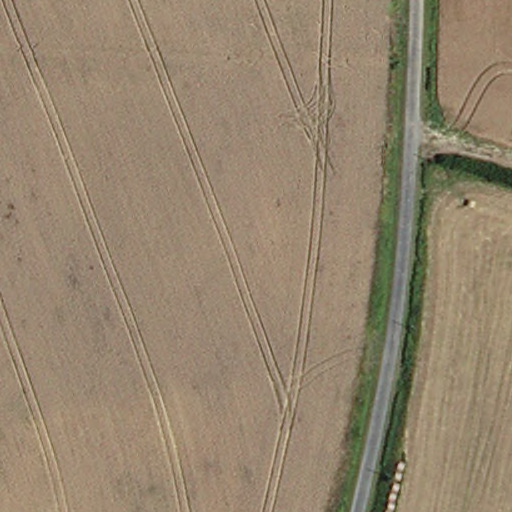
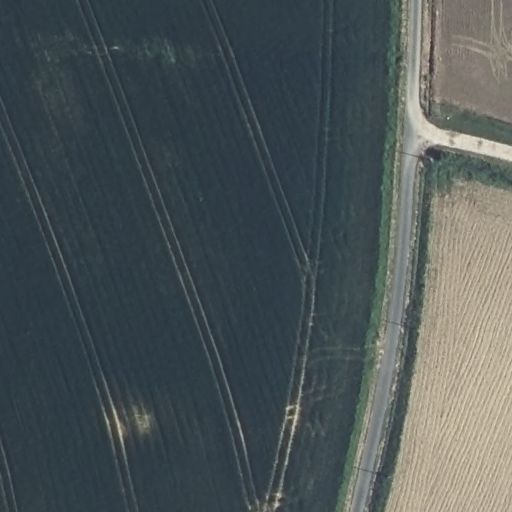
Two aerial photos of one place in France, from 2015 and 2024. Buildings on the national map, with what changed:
[]

